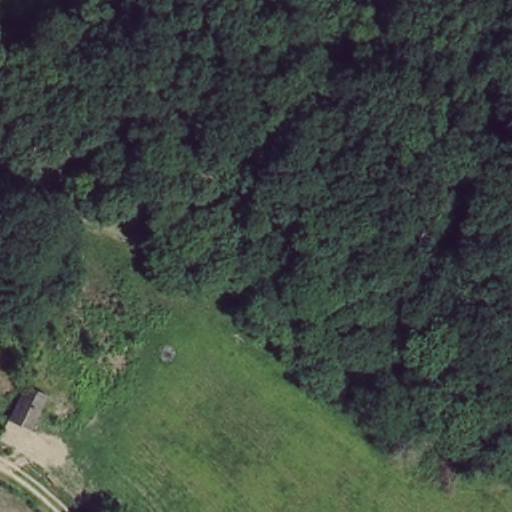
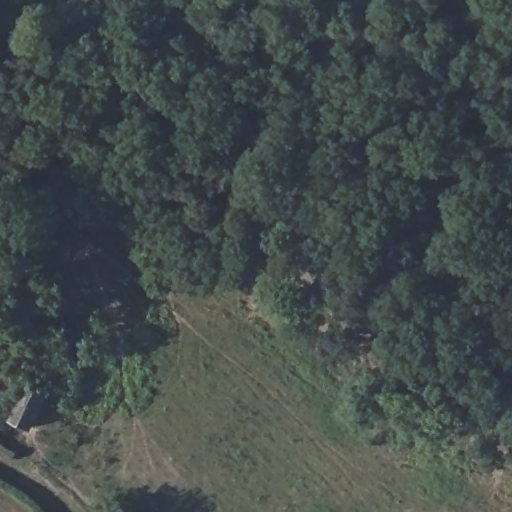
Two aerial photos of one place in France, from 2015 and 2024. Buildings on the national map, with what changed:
unchanged [(10,418),(25,386),(47,396),(32,428),(10,418)]

